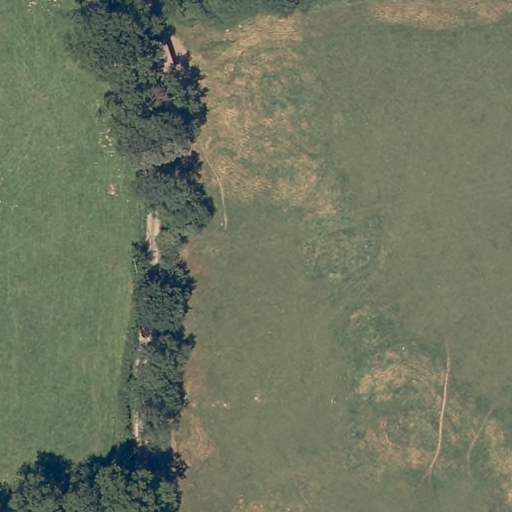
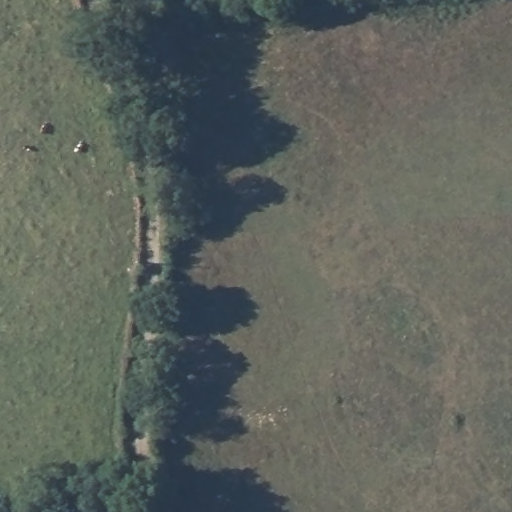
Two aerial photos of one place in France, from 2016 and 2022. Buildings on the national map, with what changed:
unchanged [(139,42),(158,35),(167,58),(149,65),(139,42)]

